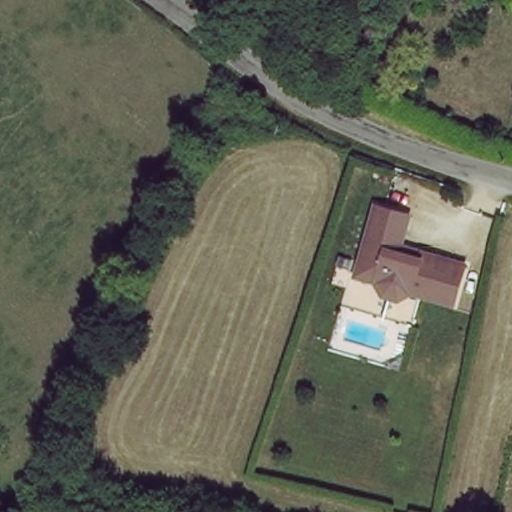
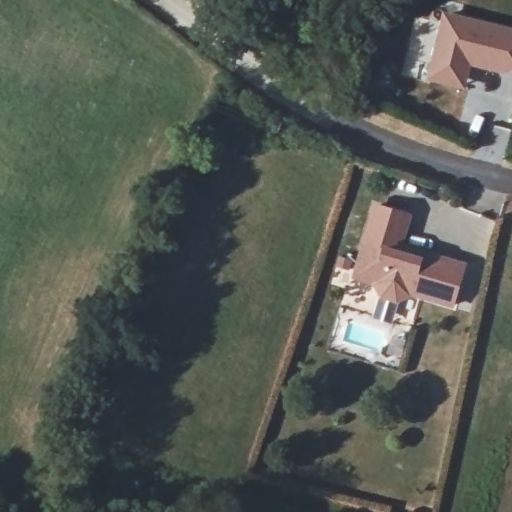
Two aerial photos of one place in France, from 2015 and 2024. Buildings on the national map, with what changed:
new [(445,11),(512,29),(512,71),(507,70),(506,74),(472,65),(465,90),(426,80),(445,11)]
unchanged [(422,252),(465,267),(452,305),(410,291),(395,297),(381,292),(373,278),(354,271),(378,202),(410,214),(400,245),(422,252)]

